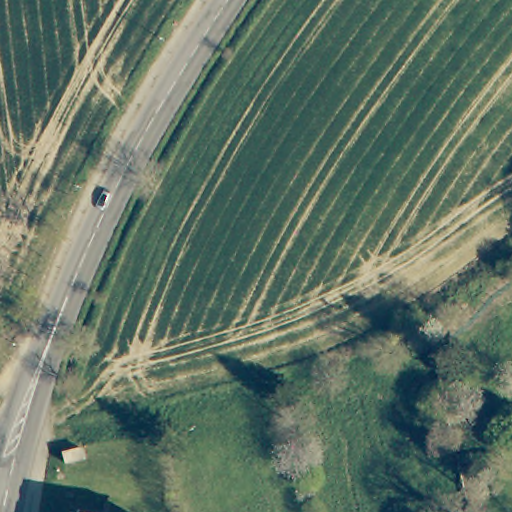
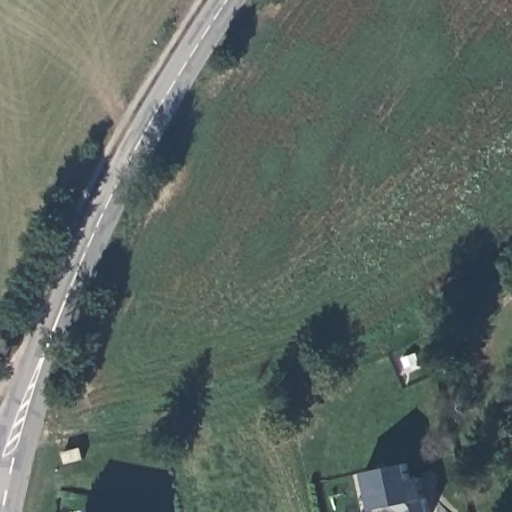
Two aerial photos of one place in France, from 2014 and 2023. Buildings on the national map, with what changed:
unchanged [(90,451),(72,457),(71,454),(69,446),(73,445),(87,440),(90,451)]
new [(399,504),(375,509),(367,472),(409,463),(413,480),(422,477),(431,512),(407,512),(406,511),(399,504)]
unchanged [(114,512),(73,512),(74,505),(114,512)]

